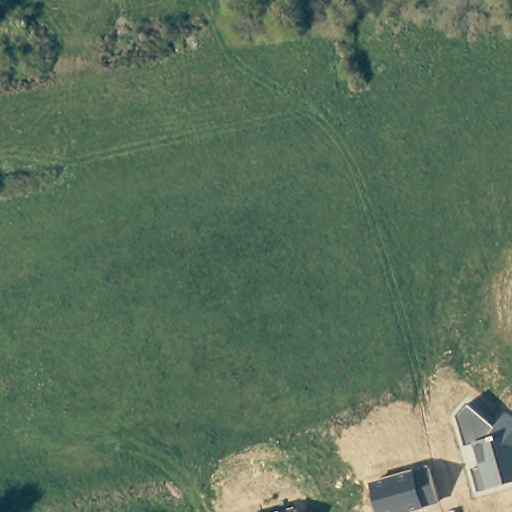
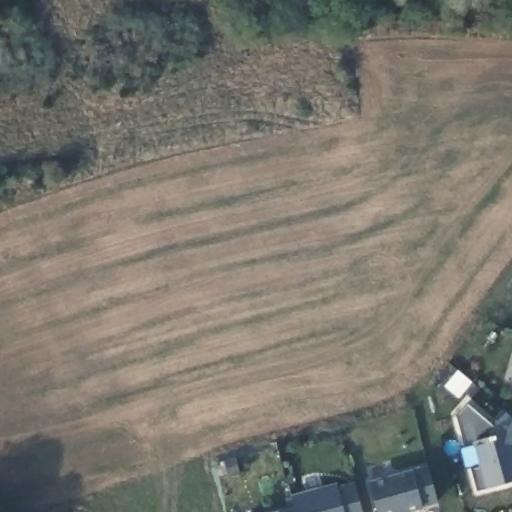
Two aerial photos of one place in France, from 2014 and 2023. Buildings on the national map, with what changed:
unchanged [(480,465),(473,443),(465,445),(457,414),(470,405),(495,426),(506,413),(512,417),(512,483),(480,491),(472,467),(480,465)]
unchanged [(370,484),(430,468),(438,503),(406,512),(377,512),(370,484)]
new [(295,509),(291,495),(336,483),(337,488),(355,483),(363,512),(296,512),(295,509)]
unchanged [(295,509),(296,512),(283,512),(295,509)]

